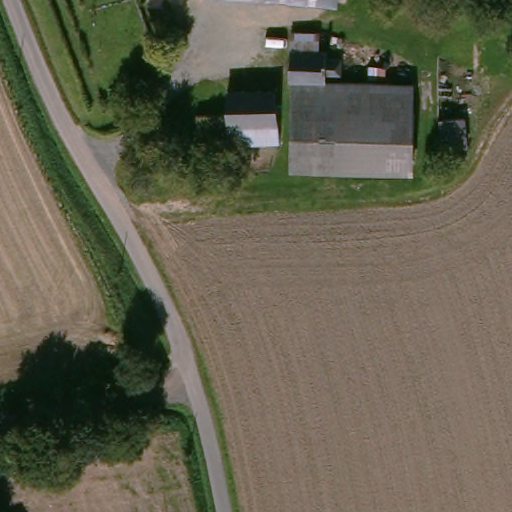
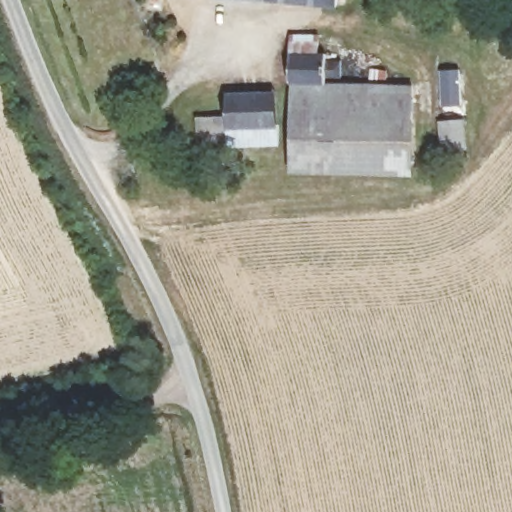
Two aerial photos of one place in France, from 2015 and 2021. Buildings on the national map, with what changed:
unchanged [(296,79),(412,77),(413,173),(290,169),(296,79)]
unchanged [(275,145),(226,144),(226,89),(275,88),(275,145)]

